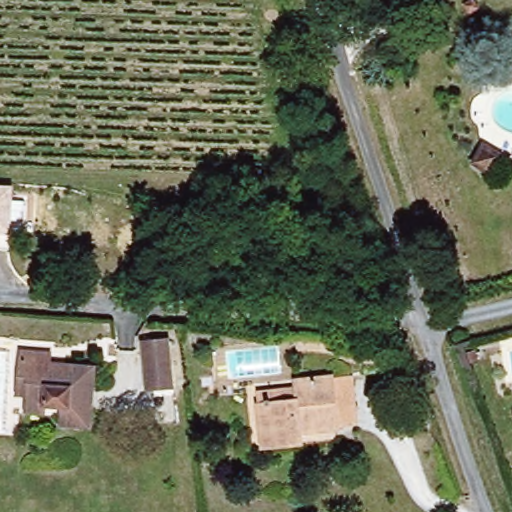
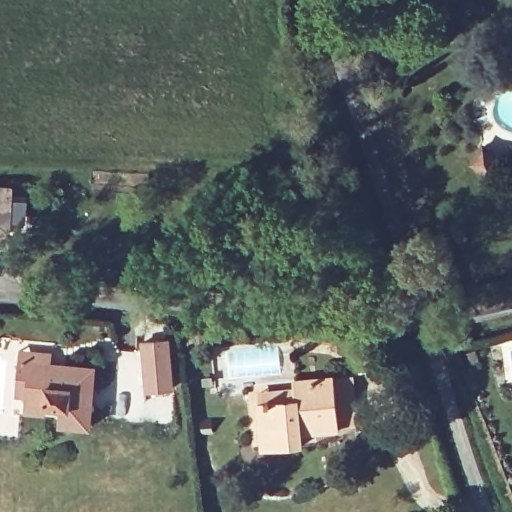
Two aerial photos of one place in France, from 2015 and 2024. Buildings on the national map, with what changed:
unchanged [(0,249),(0,187),(8,187),(7,232),(6,249),(0,249)]
unchanged [(174,339),(180,387),(154,390),(148,342),(174,339)]
unchanged [(23,415),(24,406),(24,396),(18,395),(18,379),(19,362),(50,362),(50,370),(68,370),(69,364),(93,365),(91,427),(60,424),(61,408),(44,407),(45,416),(23,415)]
unchanged [(264,451),(260,401),(259,391),(295,389),(294,380),(335,376),(347,376),(350,430),(340,430),(341,434),(312,438),(302,439),(302,448),(264,451)]

